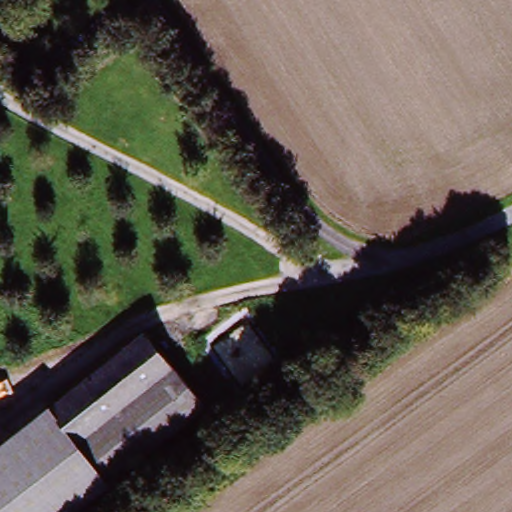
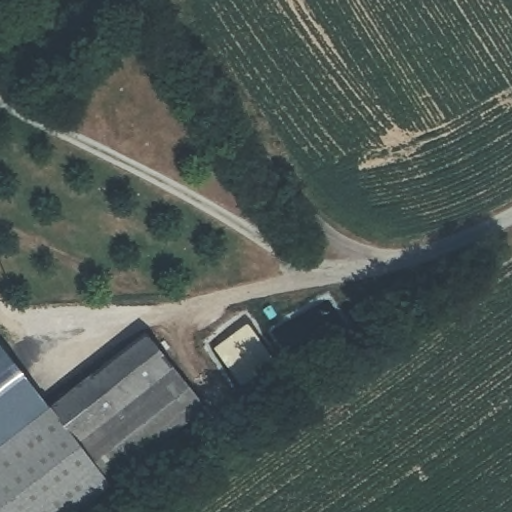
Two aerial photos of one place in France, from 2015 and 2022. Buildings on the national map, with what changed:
unchanged [(39,411),(143,325),(169,358),(64,443),(39,411)]
new [(49,403),(39,411),(0,443),(0,343),(49,403)]
unchanged [(205,403),(100,488),(64,443),(169,358),(205,403)]
unchanged [(101,490),(74,512),(0,512),(0,443),(39,411),(64,443),(100,488),(101,490)]

